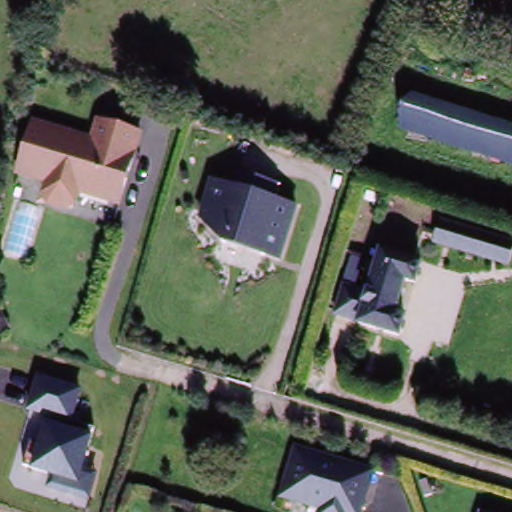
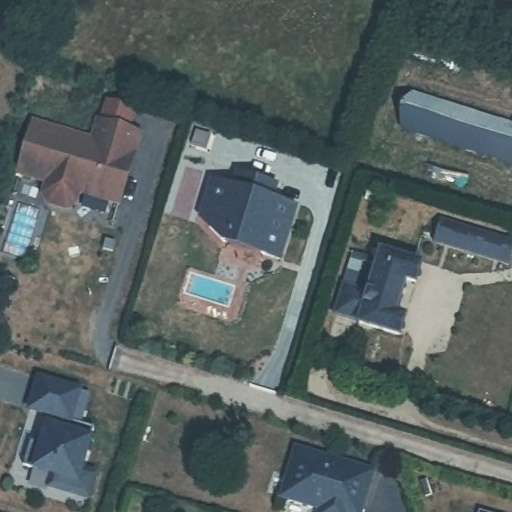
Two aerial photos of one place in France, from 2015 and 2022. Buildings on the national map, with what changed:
unchanged [(399,125),(409,93),(512,127),(512,161),(399,125)]
unchanged [(124,199),(83,187),(80,199),(71,205),(53,199),(48,190),(51,177),(23,169),(39,117),(97,135),(103,116),(145,129),(124,199)]
unchanged [(267,254),(263,247),(235,238),(227,241),(213,226),(205,218),(210,203),(217,181),(238,188),(243,173),(281,185),(277,200),(301,208),(285,259),(267,254)]
unchanged [(512,238),(512,257),(511,259),(437,237),(442,218),(512,238)]
unchanged [(395,319),(404,321),(399,340),(358,328),(359,326),(335,319),(344,290),(368,298),(380,257),(420,269),(414,288),(405,285),(395,319)]
unchanged [(2,330),(0,324),(0,314),(7,311),(13,325),(2,330)]
unchanged [(46,491),(50,475),(25,467),(39,413),(26,409),(36,377),(82,389),(72,423),(95,429),(84,469),(100,473),(89,502),(46,491)]
unchanged [(363,512),(317,512),(281,502),(296,454),(373,476),(363,512)]

